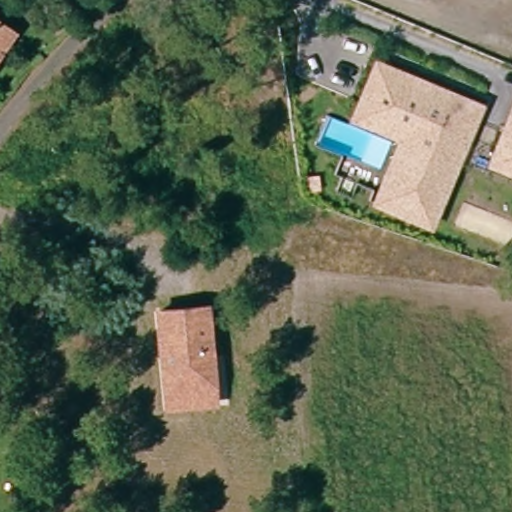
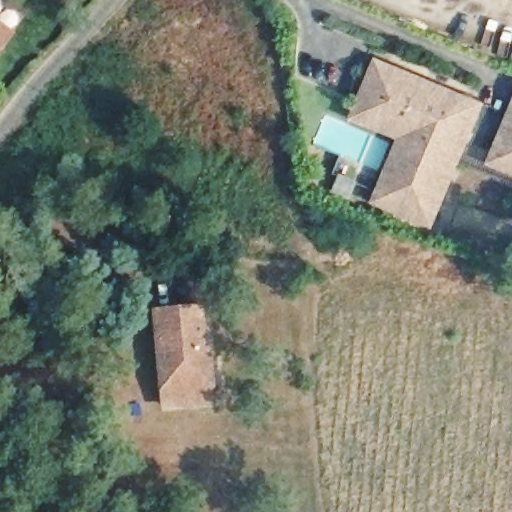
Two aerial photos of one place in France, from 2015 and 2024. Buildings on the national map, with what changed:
unchanged [(419,217),(374,200),(376,195),(380,185),(397,143),(402,129),(354,110),(371,65),(464,102),(425,202),(421,212),(419,217)]
unchanged [(499,159),(512,127),(512,164),(499,159)]
unchanged [(210,301),(219,406),(163,411),(154,306),(210,301)]

